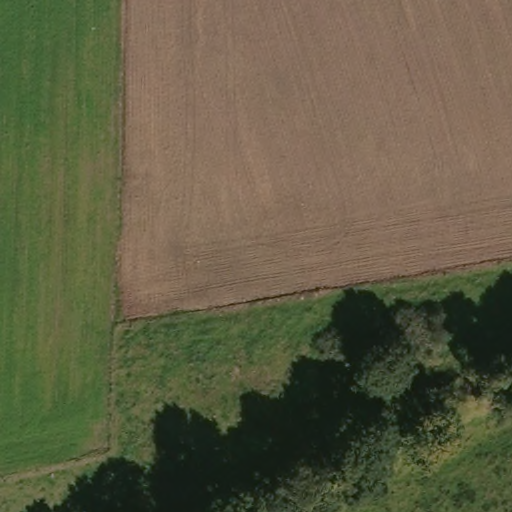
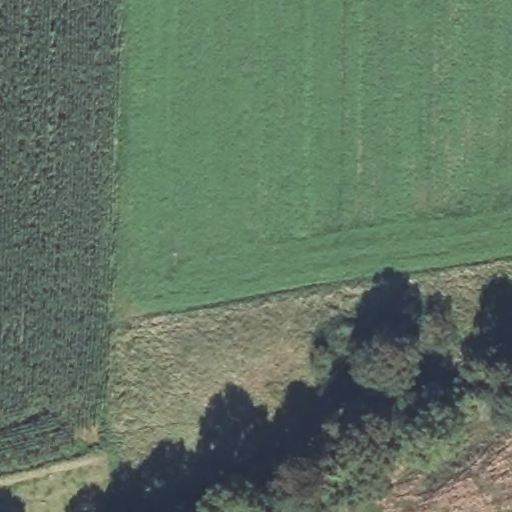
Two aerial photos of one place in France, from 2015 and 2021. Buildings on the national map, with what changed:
[]

